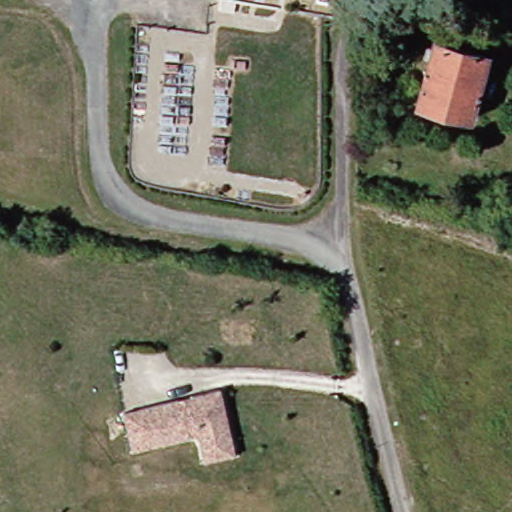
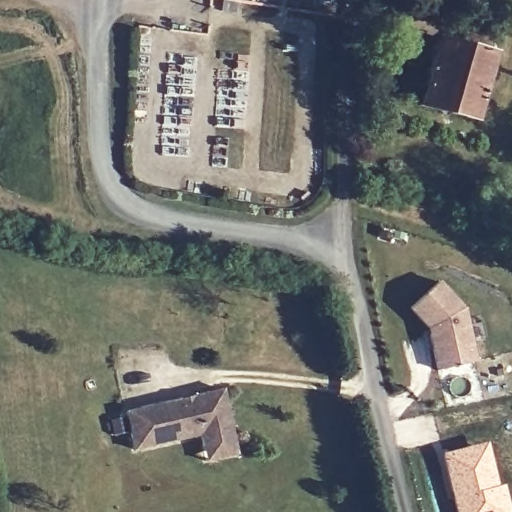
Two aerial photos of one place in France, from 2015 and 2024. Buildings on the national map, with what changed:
unchanged [(412,108),(431,36),(467,48),(475,30),(499,38),(494,57),(472,124),(412,108)]
new [(425,329),(407,310),(437,281),(462,308),(476,363),(435,371),(425,329)]
unchanged [(206,461),(203,446),(201,434),(135,447),(126,409),(181,397),(193,395),(222,389),(234,440),(237,455),(206,461)]
new [(497,484),(505,482),(512,512),(458,512),(443,452),(487,440),(497,484)]

